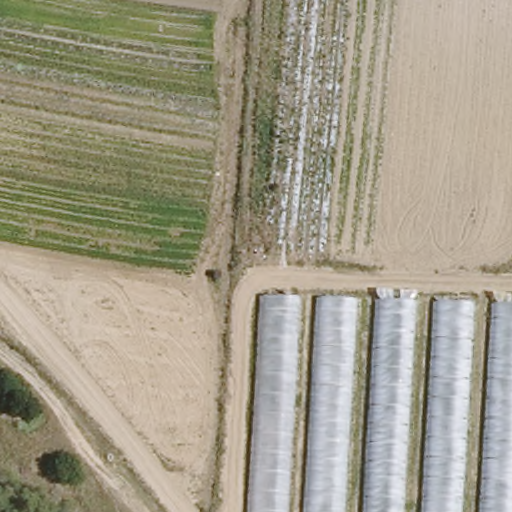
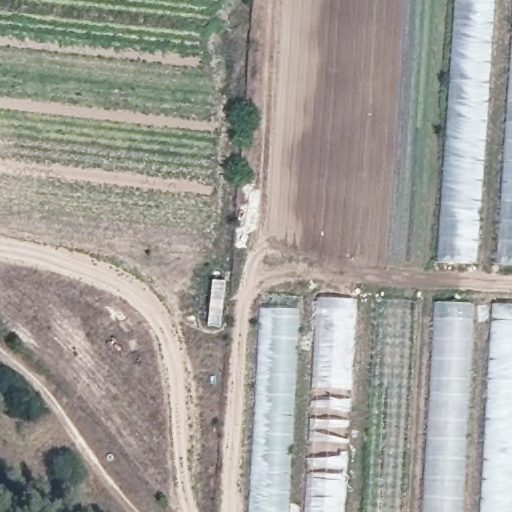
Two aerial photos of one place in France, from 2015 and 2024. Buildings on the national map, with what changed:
new [(438,260),(456,0),(494,0),(476,264),(438,260)]
new [(497,265),(512,49),(512,266),(497,265)]
unchanged [(265,295),(512,303),(512,512),(250,512),(265,295)]

